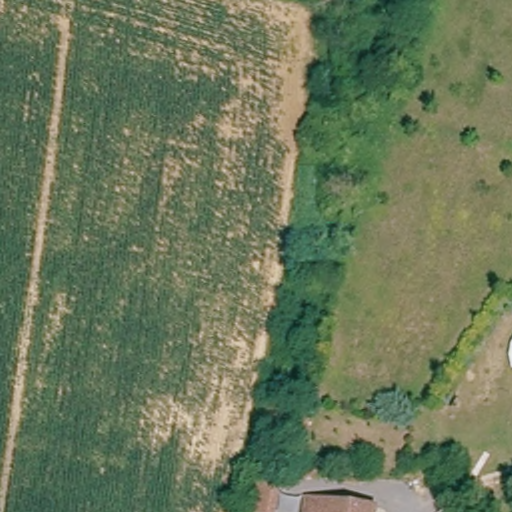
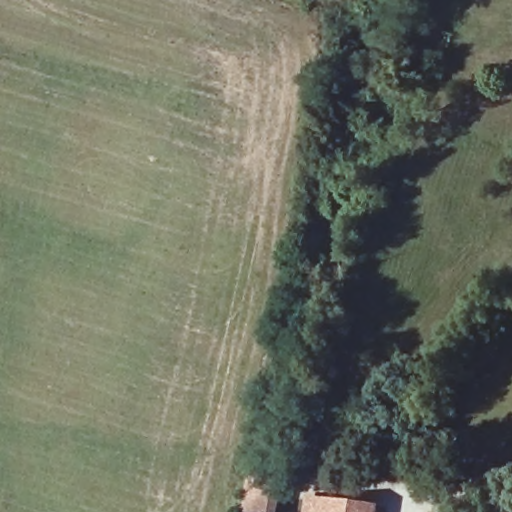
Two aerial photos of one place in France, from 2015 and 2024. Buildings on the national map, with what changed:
unchanged [(250,469),(274,471),(270,511),(245,508),(250,469)]
unchanged [(373,509),(373,512),(306,512),(307,501),(373,509)]

